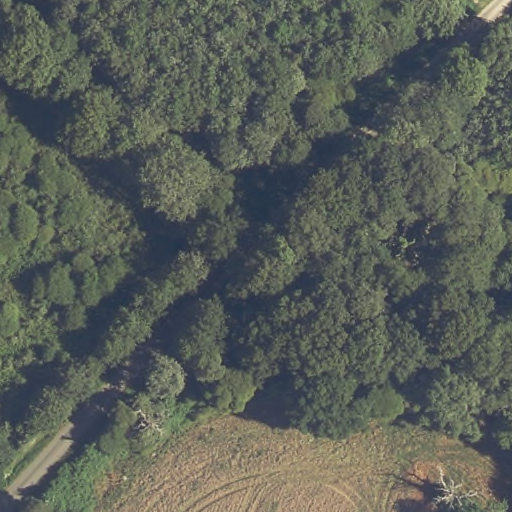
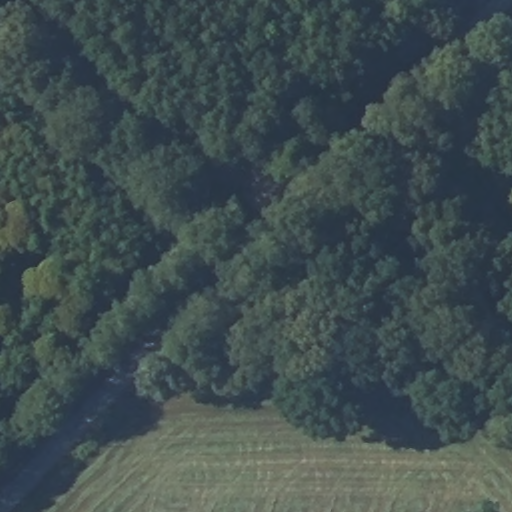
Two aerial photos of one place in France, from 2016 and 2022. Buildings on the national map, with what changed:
[]

